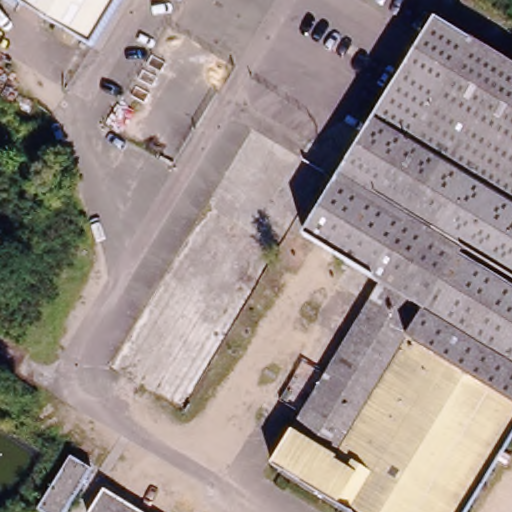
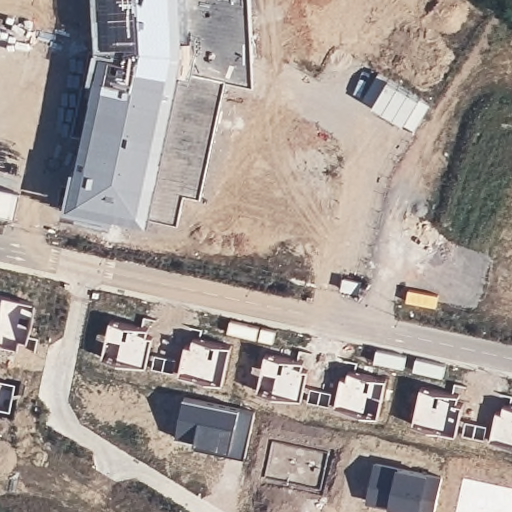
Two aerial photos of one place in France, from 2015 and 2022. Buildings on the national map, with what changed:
demolished [(28,0),(115,0),(92,38),(28,0)]
demolished [(458,512),(359,512),(273,460),(381,277),(370,270),(357,291),(336,278),(348,257),(306,231),(339,177),(436,13),(512,58),(512,423),(499,443),(507,448),(509,449),(504,458),(502,457),(494,452),(458,512)]
demolished [(62,512),(52,512),(40,505),(70,453),(90,465),(62,512)]
demolished [(88,511),(105,485),(149,512),(91,512),(88,511)]

